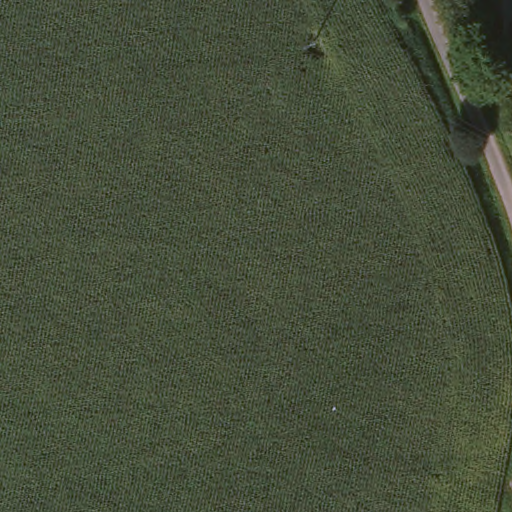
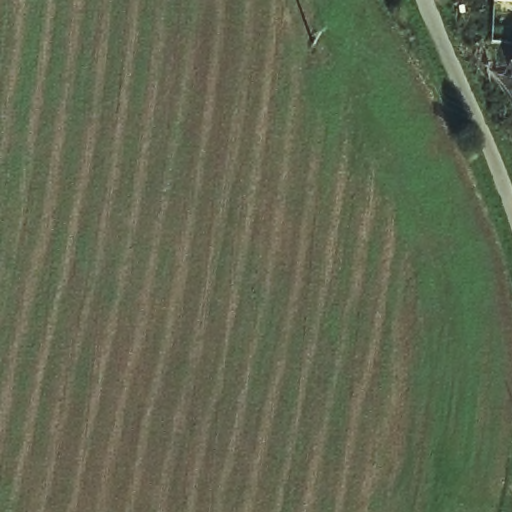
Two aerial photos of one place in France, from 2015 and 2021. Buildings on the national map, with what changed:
unchanged [(489,38),(491,0),(512,0),(512,40),(489,38)]
unchanged [(509,59),(512,58),(512,68),(509,59)]

